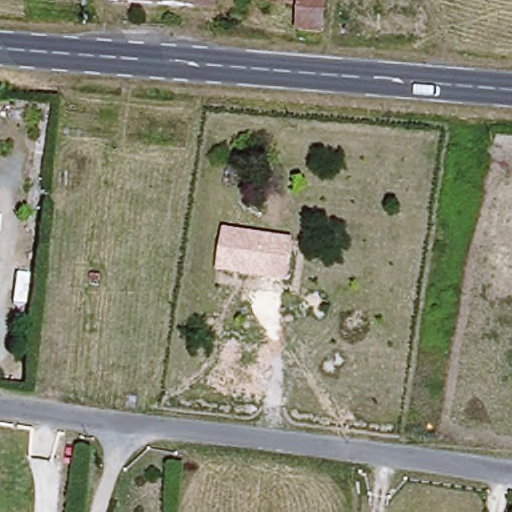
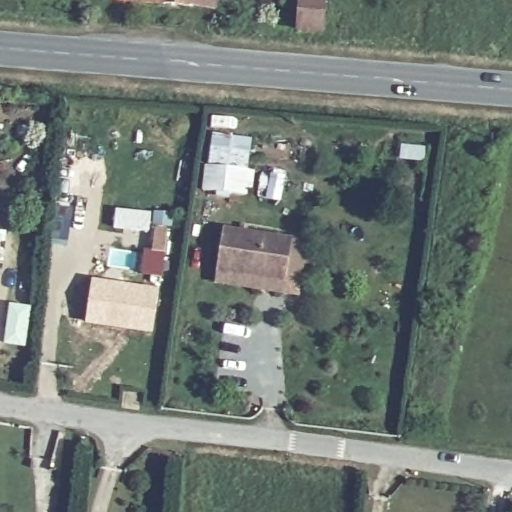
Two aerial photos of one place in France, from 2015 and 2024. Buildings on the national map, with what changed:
unchanged [(216,7),(144,0),(217,0),(216,7)]
unchanged [(268,2),(251,0),(268,0),(268,2)]
unchanged [(295,5),(272,2),(272,0),(295,0),(295,5)]
unchanged [(323,28),(304,26),(306,0),(325,0),(323,28)]
new [(211,132),(254,137),(249,167),(207,163),(211,132)]
new [(207,163),(249,167),(256,168),(250,196),(201,190),(207,163)]
new [(270,166),(289,170),(282,201),(263,197),(270,166)]
new [(151,249),(151,231),(113,228),(115,207),(152,209),(175,211),(174,227),(170,226),(165,275),(141,273),(144,248),(151,249)]
unchanged [(295,237),(288,281),(216,270),(224,225),(295,237)]
new [(90,284),(156,293),(150,334),(84,324),(90,284)]

